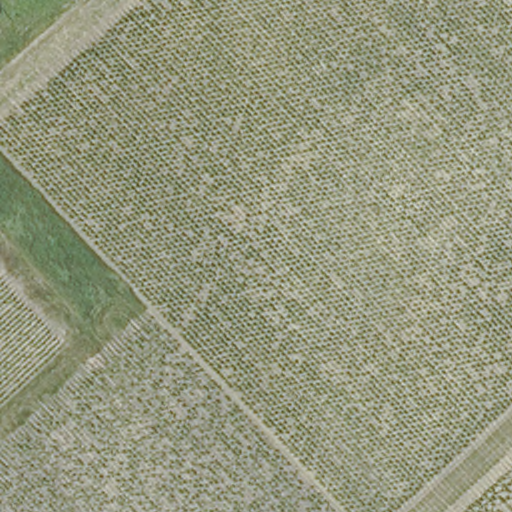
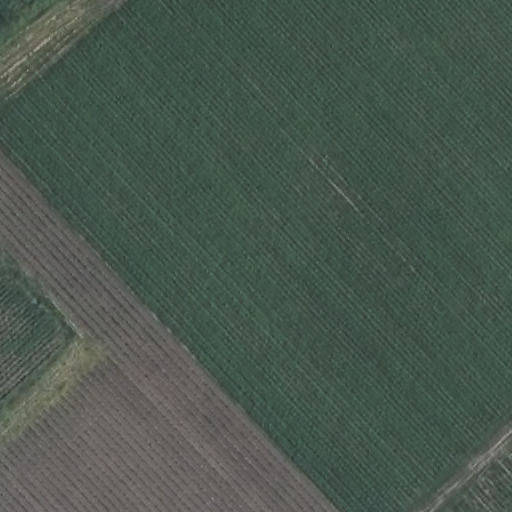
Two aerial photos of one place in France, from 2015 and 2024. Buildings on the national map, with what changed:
[]

